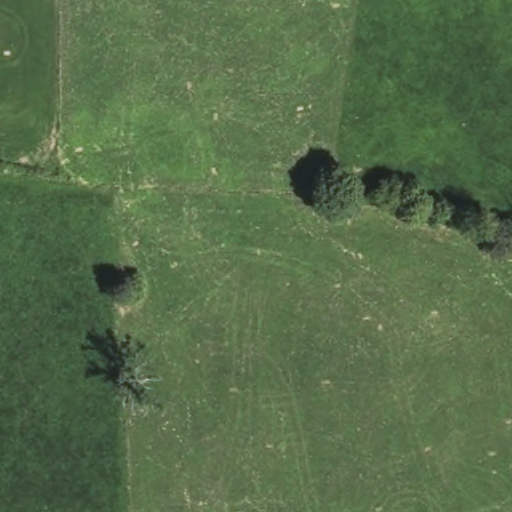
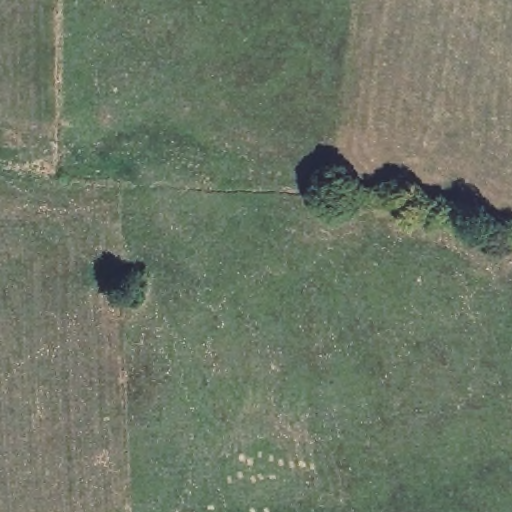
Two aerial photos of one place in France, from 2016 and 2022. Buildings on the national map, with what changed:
unchanged [(141,290),(144,306),(124,308),(121,282),(140,280),(141,290)]

